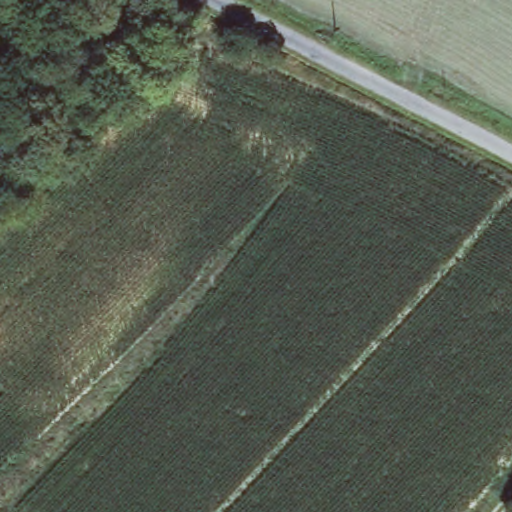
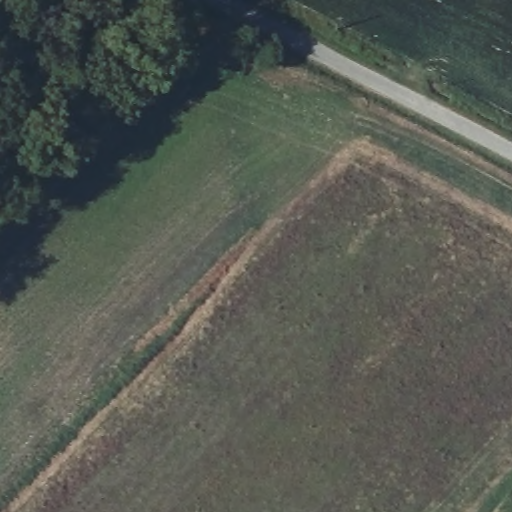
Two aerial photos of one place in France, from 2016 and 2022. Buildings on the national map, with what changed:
[]

